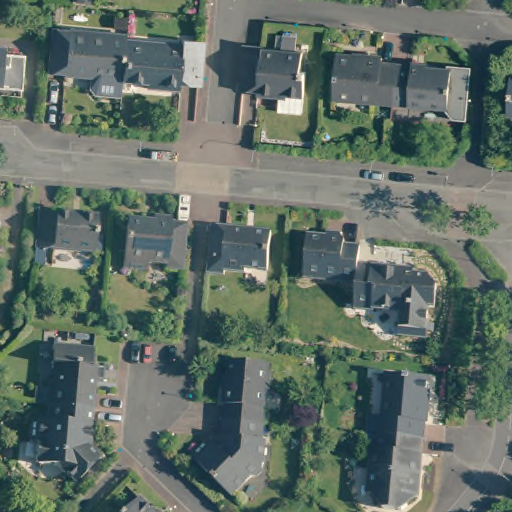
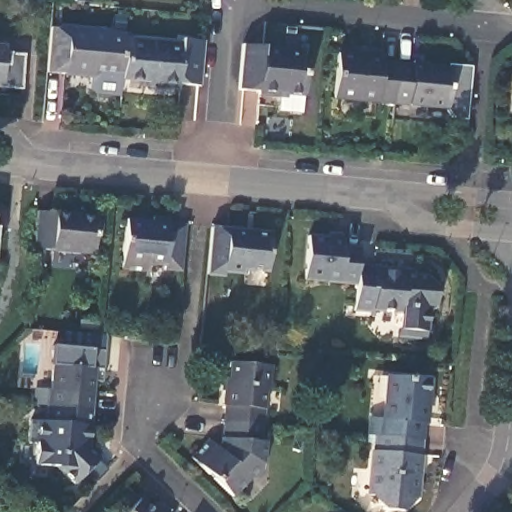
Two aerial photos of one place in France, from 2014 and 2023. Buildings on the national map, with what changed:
unchanged [(90,93),(86,86),(87,75),(42,71),(46,27),(121,34),(120,38),(177,44),(177,39),(195,40),(201,40),(197,85),(191,84),(176,84),(175,90),(155,88),(155,82),(116,79),(115,95),(90,93)]
unchanged [(273,108),(275,89),(239,86),(234,85),(238,39),(257,40),(263,44),(298,47),(296,66),(301,66),(300,91),(297,109),(273,108)]
unchanged [(5,45),(5,53),(24,55),(21,88),(0,86),(0,45),(5,45)]
unchanged [(383,99),(323,94),(328,48),(373,51),(372,57),(386,58),(383,99)]
unchanged [(457,114),(443,113),(436,105),(436,104),(383,99),(386,58),(437,62),(437,58),(461,60),(457,114)]
unchanged [(37,211),(97,217),(95,254),(40,249),(40,265),(31,265),(34,248),(37,211)]
unchanged [(161,264),(161,260),(142,259),(141,267),(116,264),(121,217),(148,219),(148,213),(166,214),(165,218),(181,219),(178,265),(161,264)]
unchanged [(272,232),(268,272),(246,269),(246,273),(226,272),(225,277),(208,274),(212,226),(227,227),(272,232)]
unchanged [(339,240),(354,242),(354,258),(351,279),(300,274),(304,232),(321,233),(322,230),(339,233),(339,240)]
unchanged [(393,332),(392,324),(395,307),(368,304),(367,308),(349,305),(351,279),(354,258),(395,264),(399,269),(423,272),(431,282),(429,304),(423,304),(421,326),(420,334),(393,332)]
unchanged [(49,405),(50,392),(50,390),(52,364),(51,363),(54,346),(92,351),(91,368),(95,369),(91,409),(49,405)]
unchanged [(225,421),(226,406),(224,404),(225,377),(229,378),(230,362),(271,365),(269,390),(266,391),(263,424),(225,421)]
unchanged [(376,436),(378,418),(385,418),(390,376),(428,379),(422,440),(376,436)]
unchanged [(87,449),(98,458),(75,483),(60,468),(41,467),(35,461),(37,444),(31,443),(32,420),(47,421),(49,405),(91,409),(87,449)]
unchanged [(262,441),(265,441),(262,472),(263,473),(258,478),(249,478),(232,496),(193,458),(210,441),(220,448),(224,443),(225,421),(263,424),(262,441)]
unchanged [(421,455),(417,455),(416,472),(420,472),(417,496),(407,494),(407,506),(400,509),(383,508),(378,503),(378,494),(370,493),(375,434),(376,436),(422,440),(421,455)]
unchanged [(5,504),(0,509),(0,496),(6,502),(5,504)]
unchanged [(141,496),(158,512),(125,512),(141,496)]

